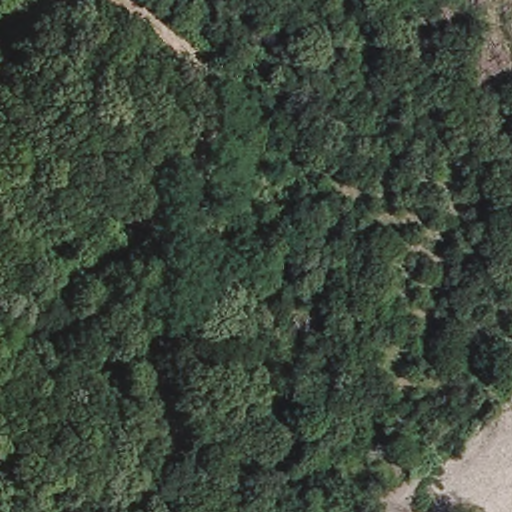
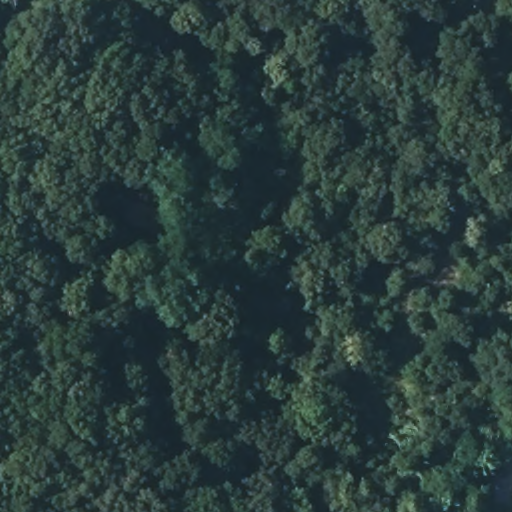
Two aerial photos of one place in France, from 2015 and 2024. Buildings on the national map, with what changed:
unchanged [(161,239),(125,229),(133,200),(170,212),(161,239)]

